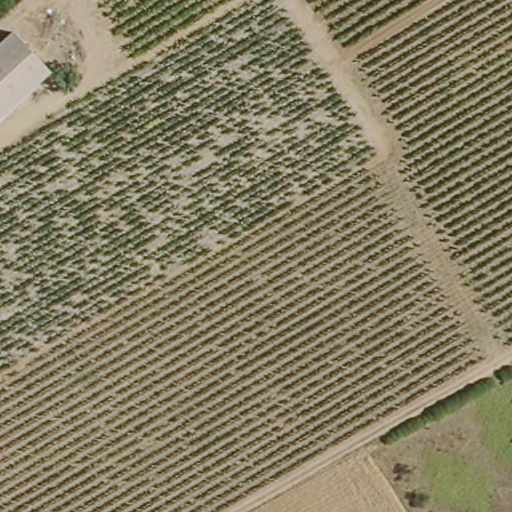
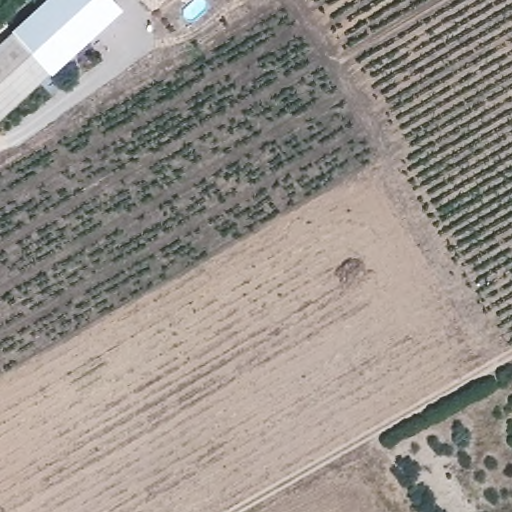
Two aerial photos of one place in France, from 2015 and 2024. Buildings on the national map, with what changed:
new [(113,0),(122,9),(54,73),(49,67),(70,51),(35,11),(46,0),(113,0)]
new [(163,0),(152,11),(142,0),(163,0)]
new [(70,51),(49,67),(16,31),(13,30),(35,11),(70,51)]
unchanged [(54,73),(0,127),(0,45),(16,31),(54,73)]

